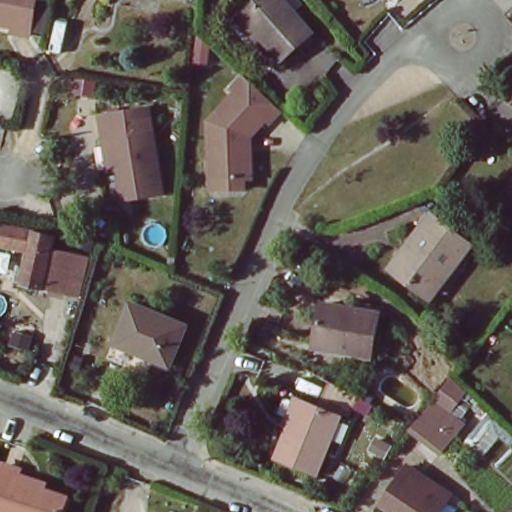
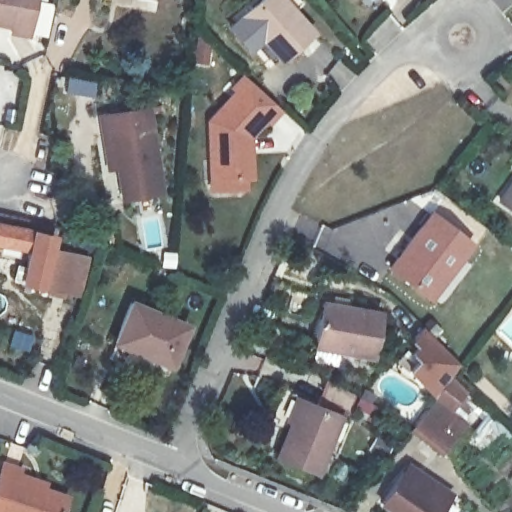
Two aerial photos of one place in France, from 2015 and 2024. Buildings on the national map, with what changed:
unchanged [(34,36),(15,33),(17,25),(0,21),(0,0),(39,0),(34,36)]
unchanged [(312,31),(281,58),(242,14),(257,0),(284,0),(312,31)]
unchanged [(64,78),(83,81),(81,89),(63,87),(64,78)]
unchanged [(214,193),(214,183),(212,125),(239,95),(235,92),(246,79),(283,113),(272,126),(268,122),(252,139),(253,145),(253,154),(254,182),(247,182),(247,192),(214,193)]
unchanged [(148,105),(162,191),(123,198),(117,164),(108,166),(102,130),(100,113),(148,105)]
unchanged [(512,181),(512,207),(499,197),(512,181)]
unchanged [(418,290),(385,264),(425,210),(470,245),(460,259),(456,256),(425,296),(418,290)]
unchanged [(53,232),(50,244),(85,254),(74,308),(15,292),(17,250),(0,247),(0,221),(53,232)]
unchanged [(381,312),(373,355),(314,343),(322,302),(381,312)]
unchanged [(184,327),(168,366),(114,345),(131,305),(184,327)]
new [(404,371),(412,360),(408,355),(413,347),(407,342),(420,328),(461,363),(450,377),(455,380),(438,402),(404,371)]
unchanged [(452,422),(465,432),(446,458),(415,431),(455,380),(472,395),(452,422)]
unchanged [(310,475),(271,455),(289,421),(282,417),(293,397),(300,401),(338,421),(310,475)]
unchanged [(16,472),(15,478),(30,483),(42,487),(40,493),(64,501),(60,511),(60,512),(0,512),(0,466),(16,472)]
unchanged [(433,512),(391,512),(379,505),(402,471),(444,497),(433,512)]

